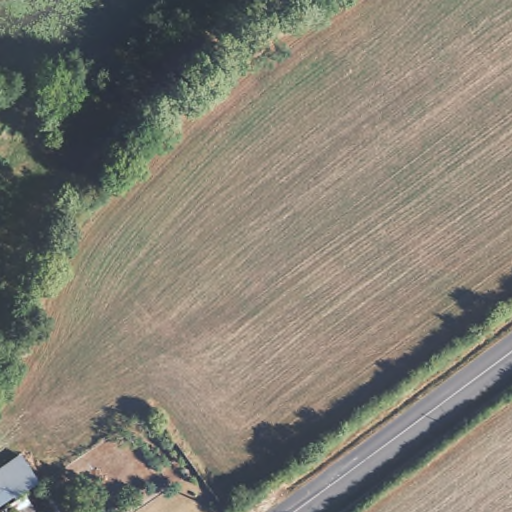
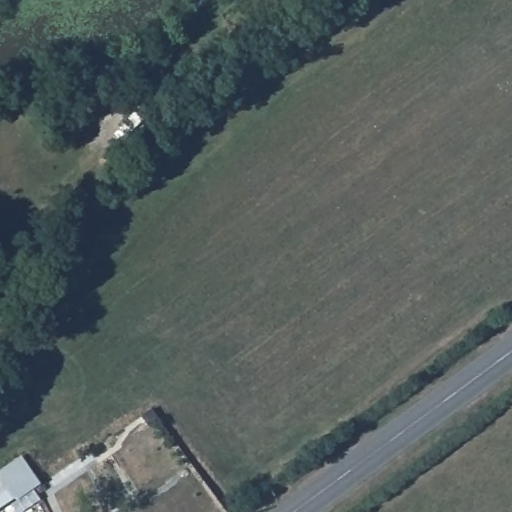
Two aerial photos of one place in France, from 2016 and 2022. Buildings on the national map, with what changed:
unchanged [(41,487),(2,512),(0,512),(0,475),(21,461),(41,487)]

